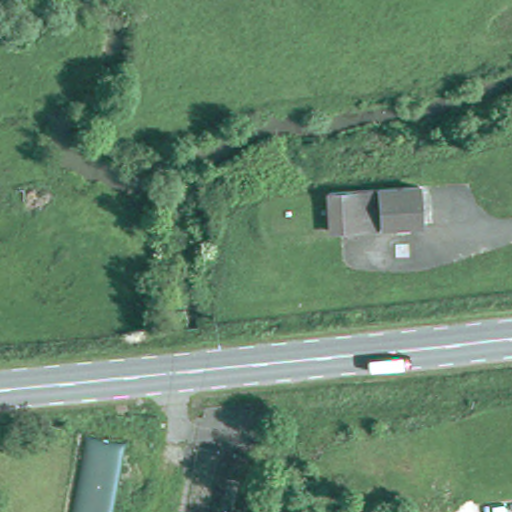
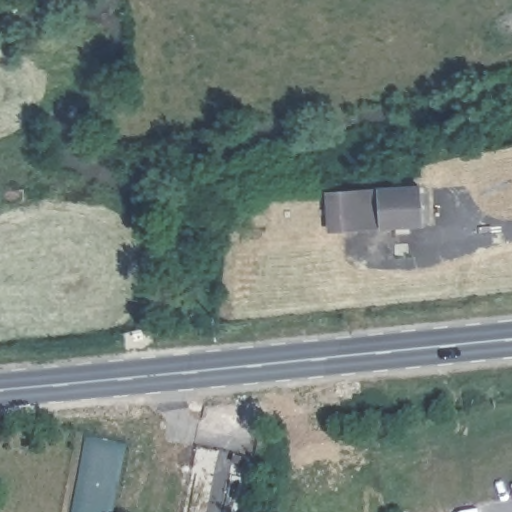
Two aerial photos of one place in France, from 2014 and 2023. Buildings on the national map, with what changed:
unchanged [(375,187),(421,184),(423,223),(377,225),(331,229),(329,190),(375,187)]

